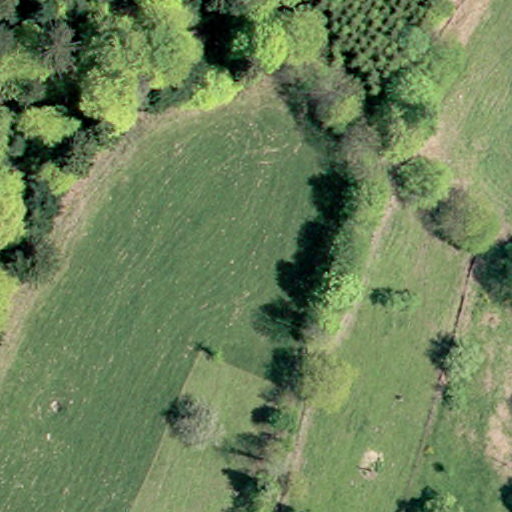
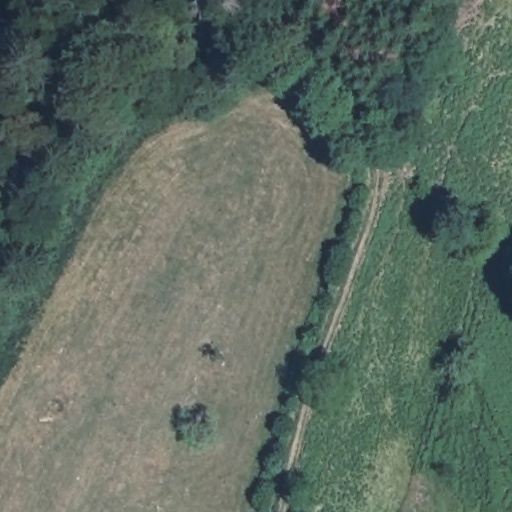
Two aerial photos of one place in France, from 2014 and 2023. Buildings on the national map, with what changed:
[]

